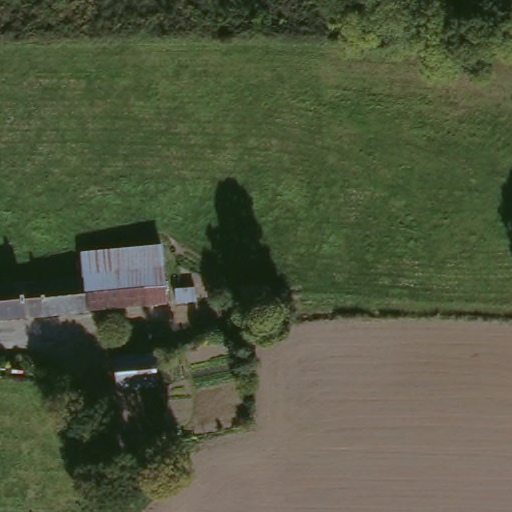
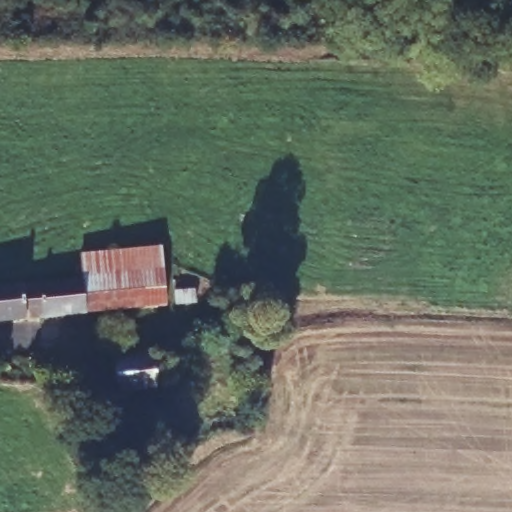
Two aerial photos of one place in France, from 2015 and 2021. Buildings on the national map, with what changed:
unchanged [(85,257),(162,254),(164,274),(86,282),(85,257)]
unchanged [(168,310),(86,319),(82,282),(86,282),(164,274),(168,310)]
unchanged [(86,319),(0,329),(0,291),(82,282),(86,319)]
unchanged [(177,295),(204,292),(206,309),(179,312),(177,295)]
unchanged [(114,356),(156,353),(159,386),(117,389),(114,356)]

